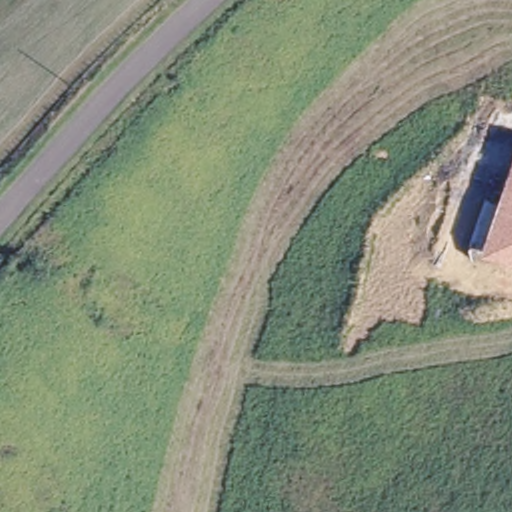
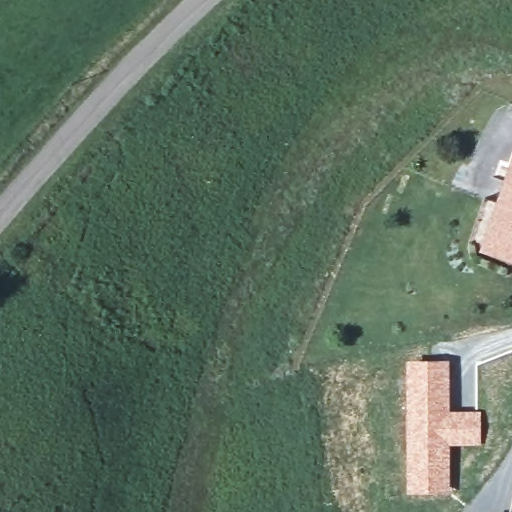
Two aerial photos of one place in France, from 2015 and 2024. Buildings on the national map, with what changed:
unchanged [(512,161),(512,261),(480,251),(512,161)]
new [(450,360),(450,410),(481,410),(482,445),(451,445),(451,492),(408,493),(407,360),(450,360)]

